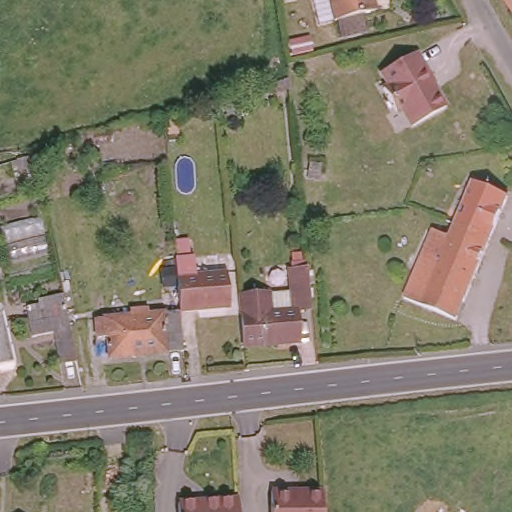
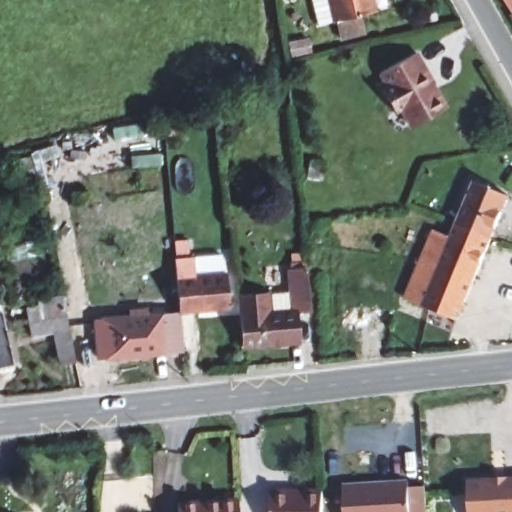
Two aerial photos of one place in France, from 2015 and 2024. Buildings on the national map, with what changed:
unchanged [(334,20),(316,25),(312,0),(370,0),(372,12),(359,15),(362,33),(338,38),(334,20)]
unchanged [(505,0),(512,0),(512,12),(505,0)]
unchanged [(433,77),(430,77),(445,100),(411,121),(399,102),(393,106),(380,84),(385,80),(377,66),(412,44),(433,77)]
unchanged [(449,236),(455,222),(475,181),(509,196),(491,237),(456,321),(405,300),(435,229),(449,236)]
unchanged [(198,275),(227,273),(229,307),(200,308),(200,313),(181,315),(181,311),(180,301),(177,255),(196,254),(198,275)]
unchanged [(287,287),(287,267),(307,265),(311,298),(312,307),(298,310),(300,337),(243,341),(240,291),(287,287)]
unchanged [(3,312),(8,311),(15,358),(11,370),(0,372),(0,294),(0,293),(3,312)]
unchanged [(57,358),(50,317),(26,320),(23,302),(63,296),(66,307),(75,357),(57,358)]
unchanged [(108,353),(106,337),(97,337),(96,318),(132,315),(132,308),(150,307),(151,313),(181,311),(181,315),(183,348),(108,353)]
new [(487,477),(487,480),(500,479),(500,477),(512,476),(512,512),(462,512),(461,478),(487,477)]
new [(402,480),(402,485),(418,484),(420,512),(338,512),(336,483),(402,480)]
unchanged [(271,492),(323,494),(323,512),(271,512),(271,492)]
unchanged [(241,497),(242,512),(182,512),(181,500),(241,497)]

